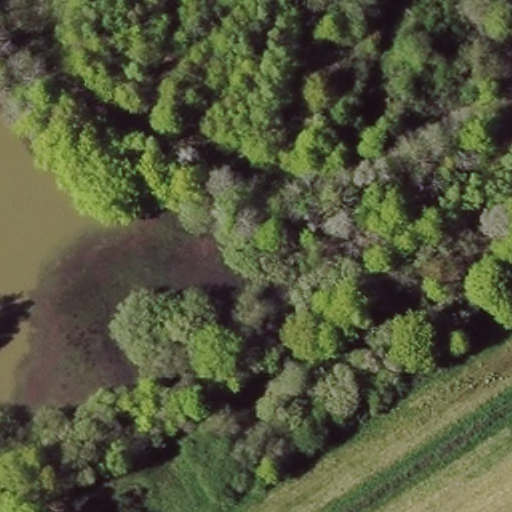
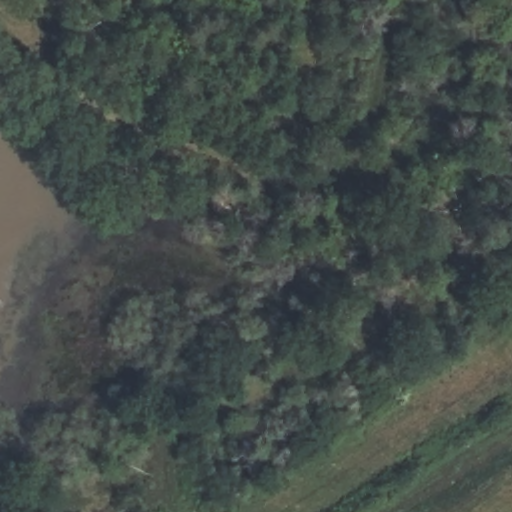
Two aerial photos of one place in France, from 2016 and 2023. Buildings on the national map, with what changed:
[]

